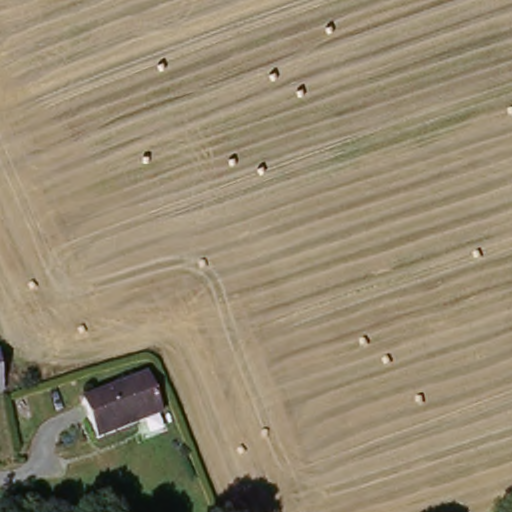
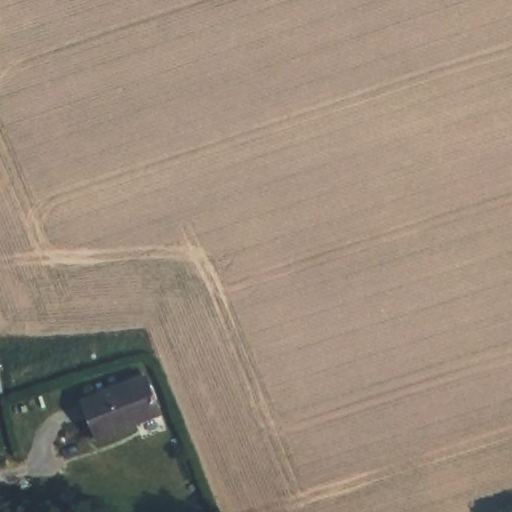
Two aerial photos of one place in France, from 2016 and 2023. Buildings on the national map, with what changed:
unchanged [(4,391),(0,391),(0,367),(4,391)]
unchanged [(150,382),(165,419),(102,441),(85,403),(150,382)]

